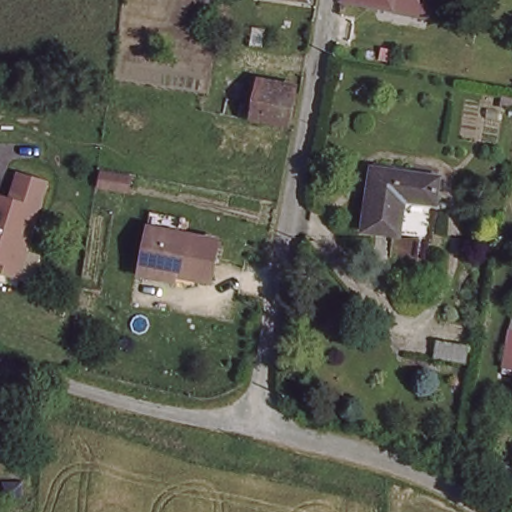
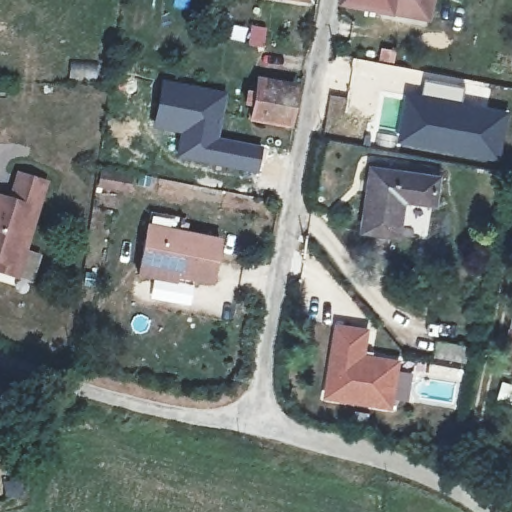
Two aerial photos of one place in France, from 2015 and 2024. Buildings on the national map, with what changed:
unchanged [(347,3),(348,0),(428,0),(424,18),(347,3)]
unchanged [(274,33),(273,42),(256,39),(258,30),(274,33)]
new [(70,60),(98,62),(97,80),(68,78),(70,60)]
new [(161,79),(227,91),(219,137),(263,146),(258,176),(174,158),(178,134),(152,129),(161,79)]
unchanged [(248,116),(250,106),(245,105),(247,94),(253,95),(255,85),(300,95),(294,129),(248,116)]
new [(404,91),(463,98),(511,110),(500,164),(396,145),(404,91)]
unchanged [(403,199),(395,234),(361,225),(373,168),(441,184),(436,208),(403,199)]
new [(96,187),(99,170),(132,176),(129,193),(96,187)]
unchanged [(51,180),(20,281),(0,275),(0,196),(10,200),(18,171),(51,180)]
unchanged [(210,294),(171,285),(172,280),(138,275),(145,233),(148,217),(175,222),(172,239),(218,250),(210,294)]
new [(389,406),(326,395),(337,325),(366,331),(362,355),(397,362),(389,406)]
unchanged [(512,335),(512,368),(506,367),(512,335)]
unchanged [(475,348),(471,367),(440,361),(444,342),(475,348)]

